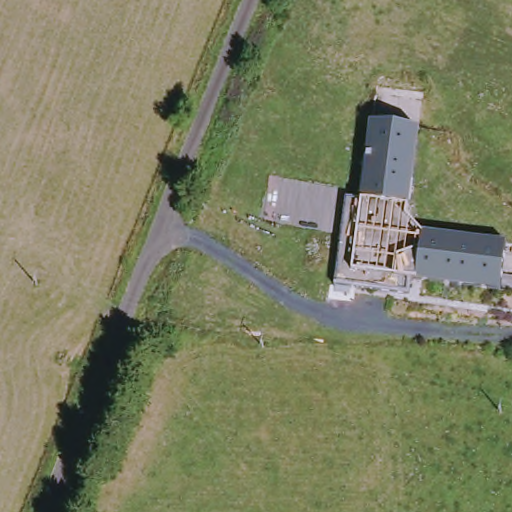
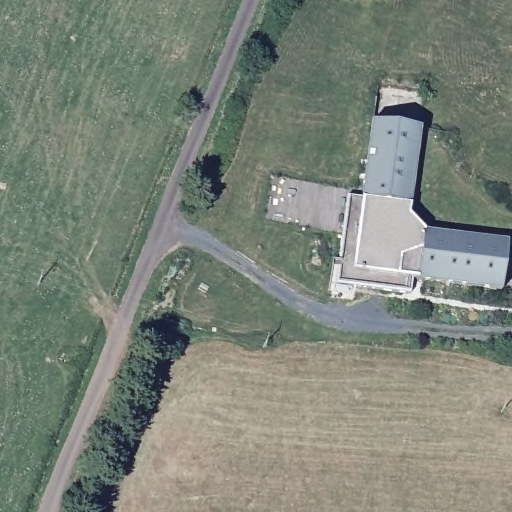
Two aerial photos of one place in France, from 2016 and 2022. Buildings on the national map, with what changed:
unchanged [(417,132),(406,220),(422,237),(505,248),(499,295),(410,283),(407,297),(351,291),(350,298),(334,296),(346,202),(361,204),(371,127),(417,132)]

